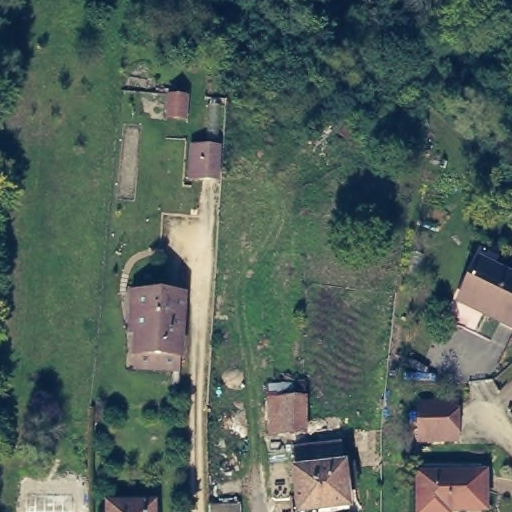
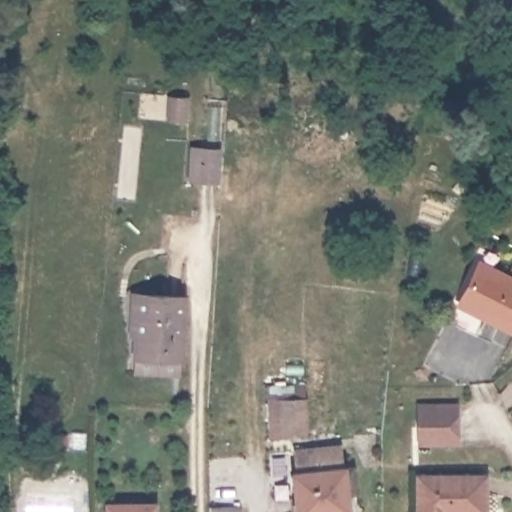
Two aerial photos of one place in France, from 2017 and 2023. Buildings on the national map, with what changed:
unchanged [(193,143),(223,147),(223,180),(190,176),(193,143)]
unchanged [(511,268),(512,266),(512,333),(454,306),(480,253),(511,268)]
unchanged [(190,293),(186,362),(131,361),(133,289),(190,293)]
unchanged [(265,385),(303,383),(309,436),(265,436),(265,385)]
unchanged [(458,401),(459,446),(418,446),(420,402),(458,401)]
unchanged [(355,512),(296,512),(291,468),(347,461),(355,512)]
unchanged [(490,512),(414,512),(415,470),(491,469),(490,512)]
unchanged [(161,512),(107,512),(107,500),(160,500),(161,512)]
unchanged [(210,512),(210,505),(245,503),(245,512),(210,512)]

